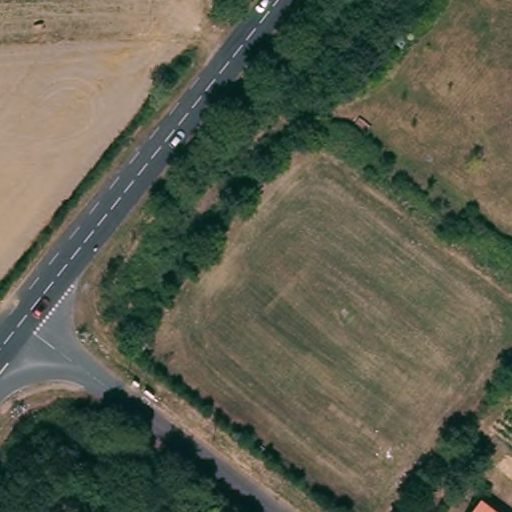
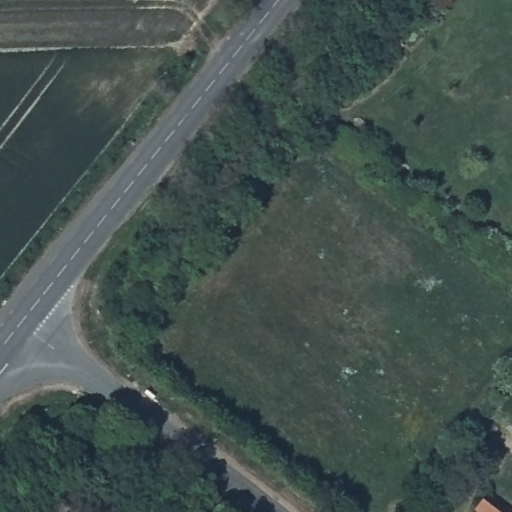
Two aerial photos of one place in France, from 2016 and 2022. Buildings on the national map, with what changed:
unchanged [(493,512),(476,512),(482,503),(493,512)]

